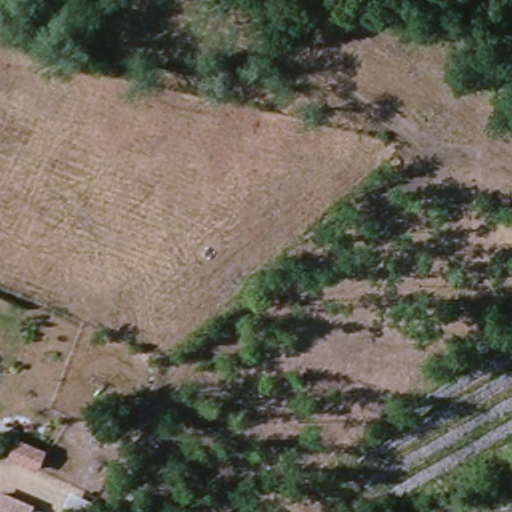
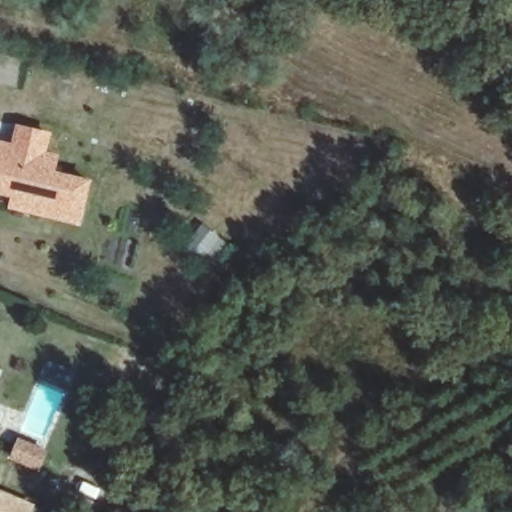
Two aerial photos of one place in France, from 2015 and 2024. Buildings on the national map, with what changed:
new [(12,141),(17,121),(52,131),(48,151),(60,154),(56,170),(93,181),(82,224),(8,207),(12,197),(0,194),(0,138),(12,141)]
unchanged [(34,511),(34,512),(0,512),(0,505),(2,499),(34,511)]

